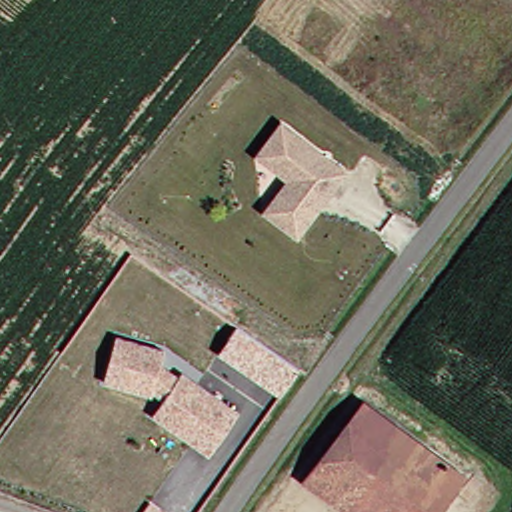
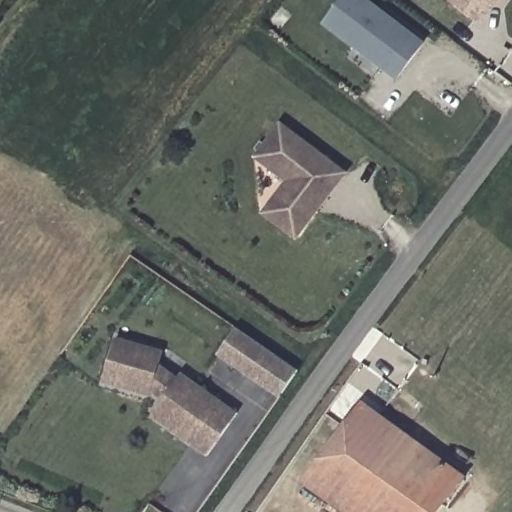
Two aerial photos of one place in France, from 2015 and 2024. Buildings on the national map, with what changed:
new [(367,0),(422,43),(396,77),(324,22),(341,0),(367,0)]
new [(452,1),(454,0),(500,0),(497,4),(482,24),(466,12),(452,1)]
unchanged [(263,209),(287,177),(256,153),(280,121),(342,170),(294,233),(263,209)]
unchanged [(278,397),(217,355),(235,328),(241,332),(297,370),(278,397)]
unchanged [(158,412),(164,403),(167,399),(154,391),(153,396),(122,387),(107,383),(108,377),(120,338),(166,351),(162,364),(182,378),(183,376),(185,374),(240,414),(213,451),(210,455),(193,444),(155,415),(158,412)]
unchanged [(299,481),(354,402),(459,476),(440,501),(414,482),(393,512),(343,512),(299,481)]
unchanged [(432,512),(393,512),(414,482),(440,501),(432,512)]

